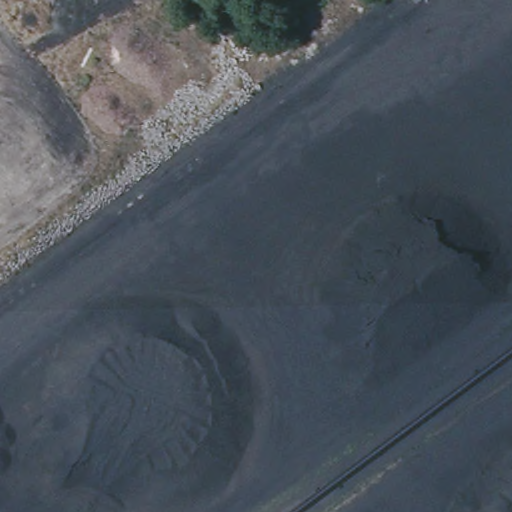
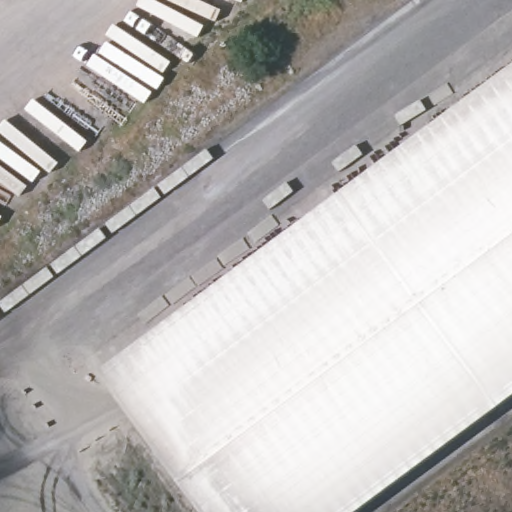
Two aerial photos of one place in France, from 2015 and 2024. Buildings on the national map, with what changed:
new [(366,512),(165,512),(73,387),(512,63),(512,404),(366,512)]

